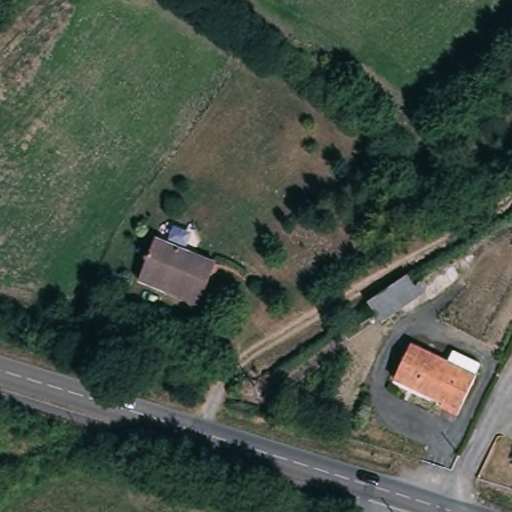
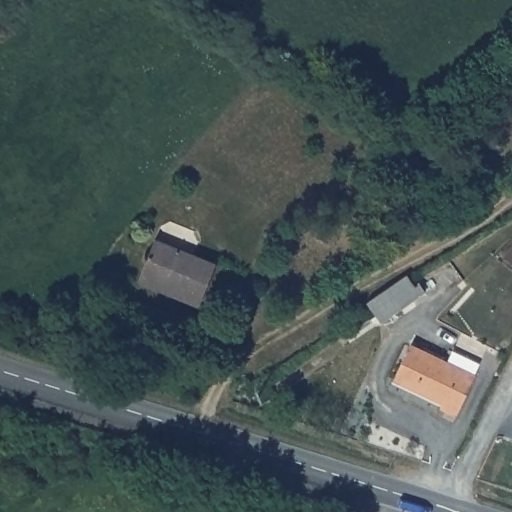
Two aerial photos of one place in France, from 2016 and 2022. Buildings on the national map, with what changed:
unchanged [(164,291),(142,282),(158,240),(219,265),(204,302),(202,307),(164,291)]
unchanged [(384,324),(370,304),(410,277),(417,287),(422,284),(428,294),(384,324)]
unchanged [(461,417),(444,410),(446,405),(397,382),(413,347),(451,365),(456,353),(483,367),(478,378),(461,417)]

